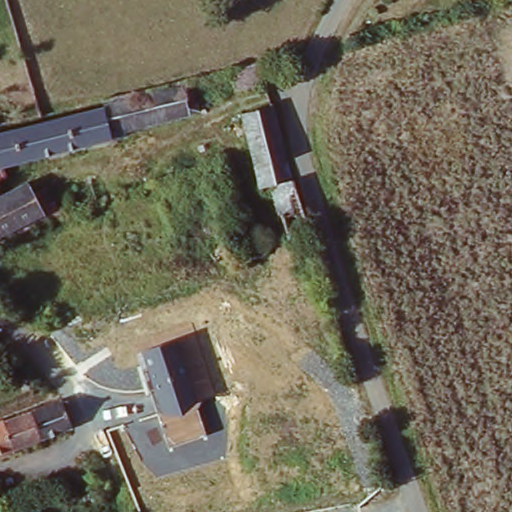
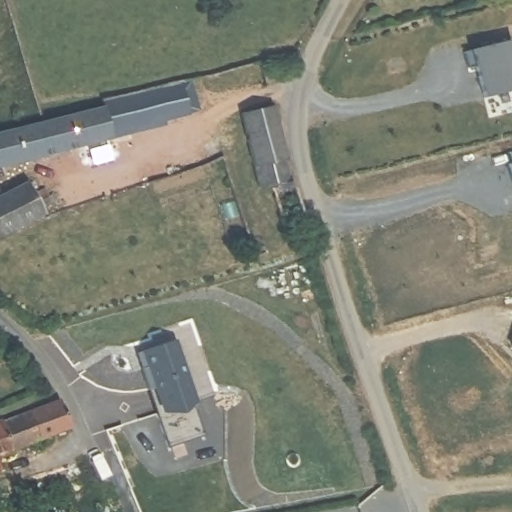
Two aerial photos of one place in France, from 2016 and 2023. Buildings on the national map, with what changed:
new [(492,98),(485,67),(476,71),(473,55),(512,40),(512,92),(492,98)]
unchanged [(242,89),(238,68),(268,60),(273,80),(242,89)]
unchanged [(97,109),(187,88),(194,119),(107,141),(107,145),(0,174),(0,141),(97,114),(97,109)]
unchanged [(271,195),(260,198),(243,121),(273,114),(290,189),(292,189),(308,235),(305,237),(311,257),(292,263),(289,253),(271,195)]
unchanged [(50,222),(0,245),(0,203),(32,188),(50,222)]
unchanged [(177,339),(196,404),(205,434),(169,447),(149,389),(142,371),(137,353),(140,352),(177,339)]
new [(511,348),(512,346),(512,349),(511,348)]
unchanged [(0,431),(66,406),(77,434),(0,463),(0,431)]

